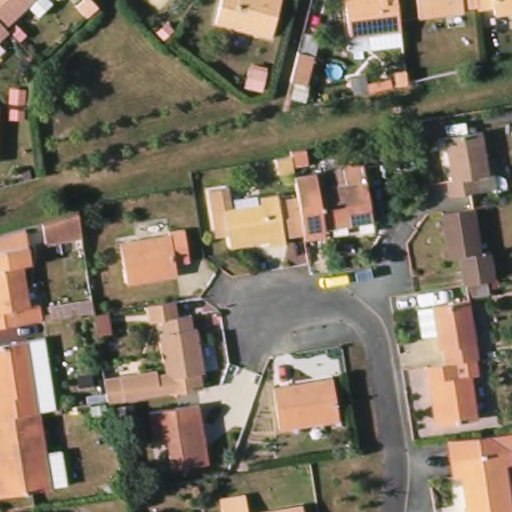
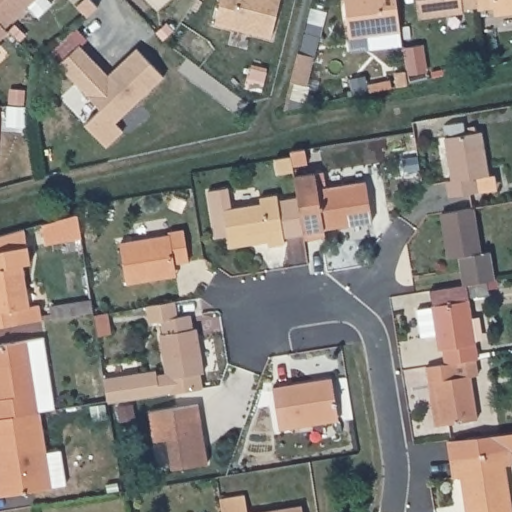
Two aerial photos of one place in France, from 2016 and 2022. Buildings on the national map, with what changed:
unchanged [(56,4),(42,16),(32,5),(9,27),(0,17),(0,0),(53,0),(56,4)]
unchanged [(98,7),(87,17),(76,6),(83,0),(92,0),(98,7)]
unchanged [(226,0),(286,0),(276,38),(220,24),(226,0)]
unchanged [(407,45),(375,49),(373,35),(355,37),(350,0),(401,0),(407,45)]
unchanged [(468,9),(468,12),(424,17),(422,0),(482,0),(483,6),(468,9)]
unchanged [(498,7),(483,9),(483,6),(482,0),(512,0),(512,13),(500,15),(498,7)]
unchanged [(13,31),(0,43),(0,17),(9,27),(13,31)]
unchanged [(20,25),(29,34),(23,40),(15,31),(20,25)]
new [(136,48),(165,77),(116,122),(124,131),(106,147),(85,124),(101,109),(60,64),(80,44),(108,73),(136,48)]
unchanged [(306,85),(290,81),(298,52),(313,56),(306,85)]
unchanged [(250,69),(265,72),(261,90),(246,86),(250,69)]
unchanged [(406,70),(407,85),(401,85),(397,86),(395,72),(406,70)]
unchanged [(389,80),(390,88),(369,92),(367,85),(389,80)]
unchanged [(4,105),(0,162),(0,105),(4,105)]
unchanged [(21,110),(21,119),(12,119),(12,110),(21,110)]
unchanged [(493,175),(481,177),(483,191),(455,196),(452,181),(457,180),(450,137),(486,131),(493,175)]
unchanged [(295,151),(310,149),(312,164),(298,165),(298,170),(283,173),(280,159),(296,155),(295,151)]
unchanged [(303,197),(300,175),(328,172),(368,165),(371,181),(377,221),(330,229),(330,236),(310,240),(308,234),(303,197)]
unchanged [(235,246),(233,235),(220,236),(213,190),(233,187),(236,209),(266,204),(265,198),(282,195),(283,200),(303,197),(308,234),(289,237),(290,243),(273,245),(273,240),(255,244),(235,246)]
unchanged [(485,253),(495,251),(500,280),(469,285),(464,256),(455,258),(447,213),(477,208),(485,253)]
unchanged [(50,244),(47,223),(83,213),(87,238),(50,244)]
unchanged [(29,228),(32,246),(32,245),(35,262),(27,264),(34,306),(44,305),(46,320),(0,328),(0,237),(29,228)]
unchanged [(148,281),(132,283),(125,242),(175,235),(174,232),(189,230),(194,261),(180,263),(181,270),(181,275),(148,281)]
unchanged [(162,355),(171,353),(165,314),(169,313),(167,300),(155,302),(152,285),(180,281),(182,296),(195,295),(197,309),(201,308),(209,352),(205,352),(207,368),(113,383),(112,380),(110,358),(161,350),(162,355)]
unchanged [(80,301),(91,300),(94,311),(82,313),(52,318),(50,306),(80,301)]
unchanged [(448,349),(444,350),(437,305),(474,300),(483,358),(481,359),(450,364),(448,349)]
unchanged [(107,312),(110,333),(99,335),(95,315),(107,312)]
unchanged [(43,337),(55,409),(39,411),(0,418),(0,345),(43,337)]
unchanged [(434,382),(431,367),(450,364),(481,359),(483,375),(475,376),(482,419),(445,425),(441,425),(434,382)]
unchanged [(302,426),(285,430),(278,387),(337,378),(343,415),(343,420),(302,426)]
unchanged [(213,463),(177,468),(172,439),(159,441),(154,411),(204,404),(208,433),(210,445),(213,463)]
unchanged [(39,411),(45,452),(60,450),(65,485),(50,487),(50,488),(0,496),(0,418),(39,411)]
unchanged [(512,481),(512,512),(472,512),(466,476),(459,478),(453,440),(512,433),(512,465),(510,465),(512,481)]
unchanged [(253,512),(227,512),(225,499),(250,495),(253,512)]
unchanged [(308,512),(268,512),(307,505),(308,512)]

